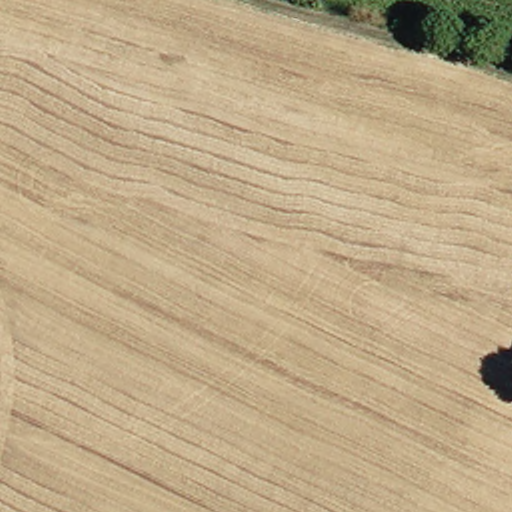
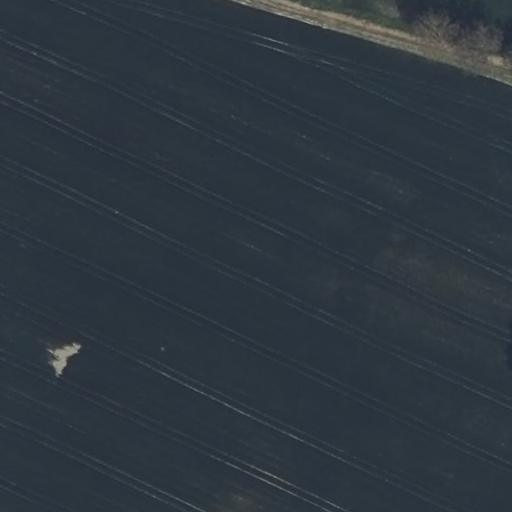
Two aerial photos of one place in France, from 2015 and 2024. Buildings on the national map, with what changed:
[]

